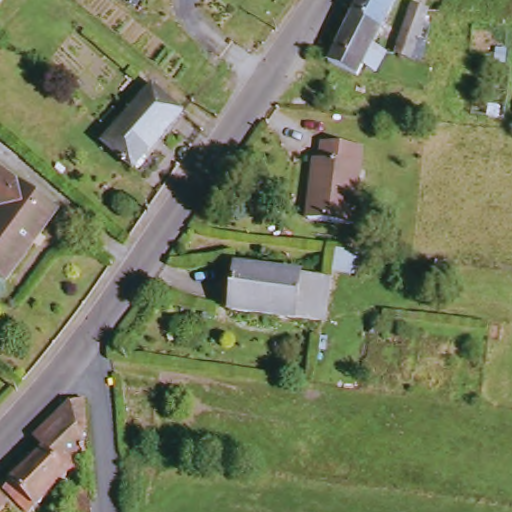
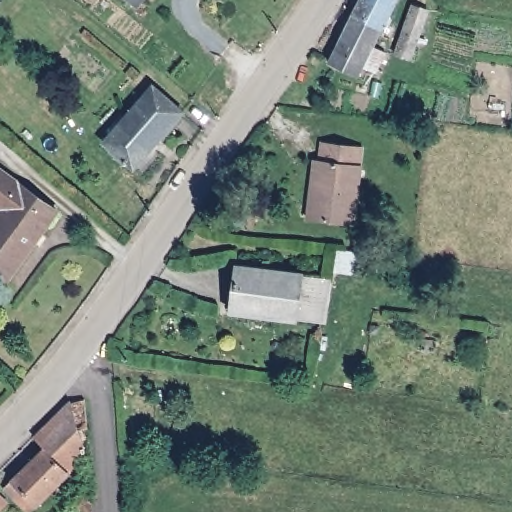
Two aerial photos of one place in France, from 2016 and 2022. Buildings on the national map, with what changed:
unchanged [(129,0),(139,0),(135,5),(129,0)]
unchanged [(363,77),(335,64),(367,0),(401,0),(363,77)]
unchanged [(411,63),(395,57),(415,1),(431,6),(411,63)]
unchanged [(136,168),(106,144),(156,87),(185,112),(136,168)]
unchanged [(315,220),(323,160),(329,160),(332,140),(371,145),(360,224),(315,220)]
unchanged [(0,274),(0,222),(8,209),(0,204),(0,167),(63,212),(15,284),(0,274)]
unchanged [(235,312),(240,267),(330,276),(323,321),(235,312)]
unchanged [(0,479),(0,478),(40,438),(32,428),(66,395),(70,390),(74,389),(84,388),(85,416),(76,417),(78,447),(25,501),(0,479)]
unchanged [(0,498),(0,485),(7,491),(0,498)]
unchanged [(78,512),(64,498),(75,485),(89,496),(90,512),(78,512)]

